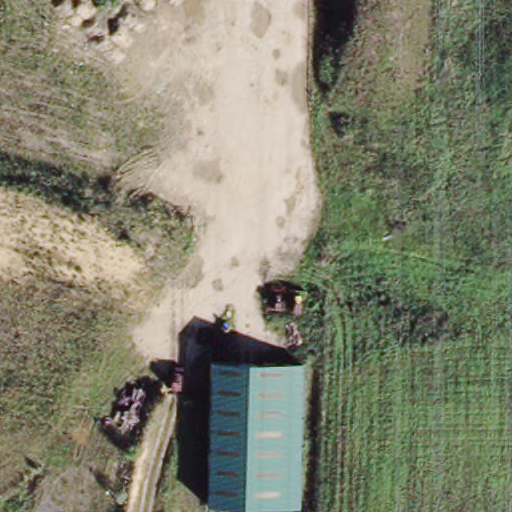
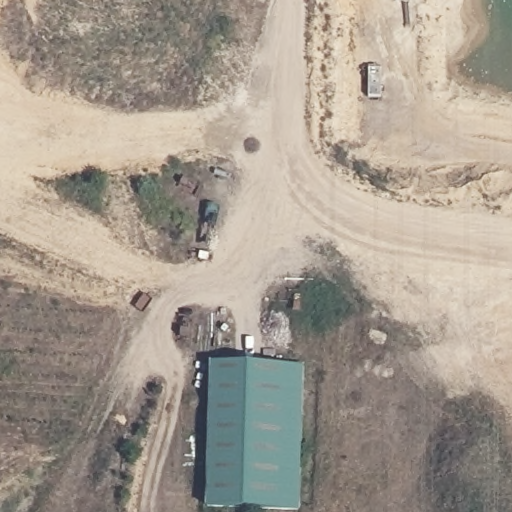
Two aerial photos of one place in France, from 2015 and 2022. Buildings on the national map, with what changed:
unchanged [(304,512),(214,512),(203,511),(209,364),(304,365),(304,512)]

